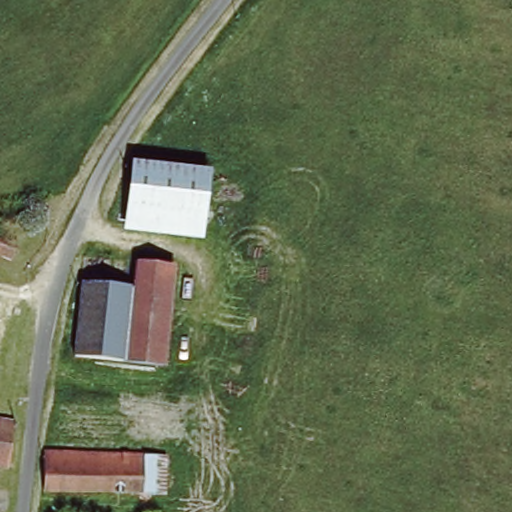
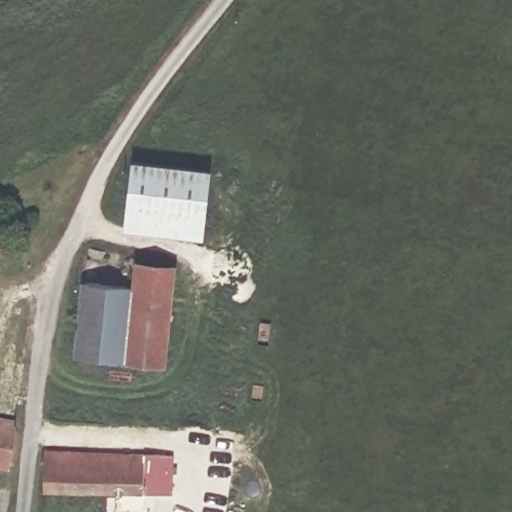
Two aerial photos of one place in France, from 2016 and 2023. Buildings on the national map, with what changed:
unchanged [(127,230),(133,162),(208,170),(201,237),(127,230)]
unchanged [(18,241),(11,260),(0,256),(0,235),(18,241)]
unchanged [(79,283),(83,256),(171,265),(168,291),(79,283)]
unchanged [(79,283),(168,291),(162,366),(161,377),(72,370),(73,359),(79,283)]
unchanged [(14,423),(8,466),(0,465),(0,422),(14,423)]
unchanged [(44,450),(166,455),(165,492),(44,488),(44,450)]

